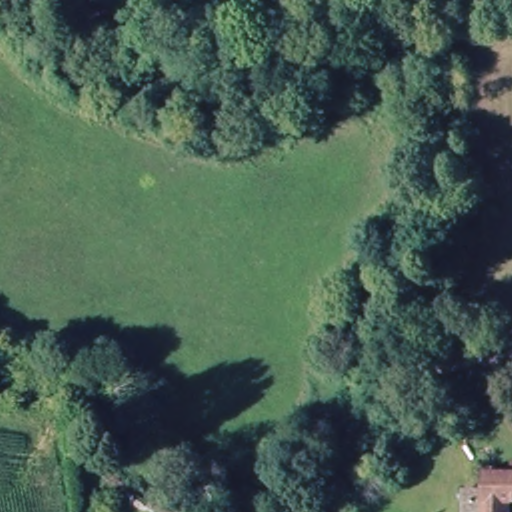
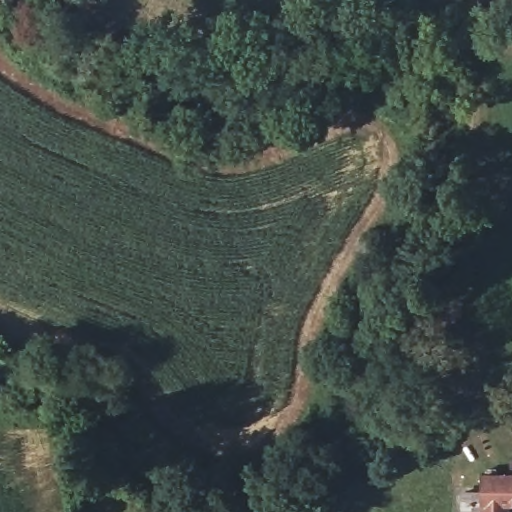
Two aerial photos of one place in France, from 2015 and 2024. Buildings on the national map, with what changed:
unchanged [(479,491),(480,481),(486,481),(487,465),(501,465),(500,476),(512,477),(512,509),(511,509),(511,512),(466,512),(466,490),(479,491)]

